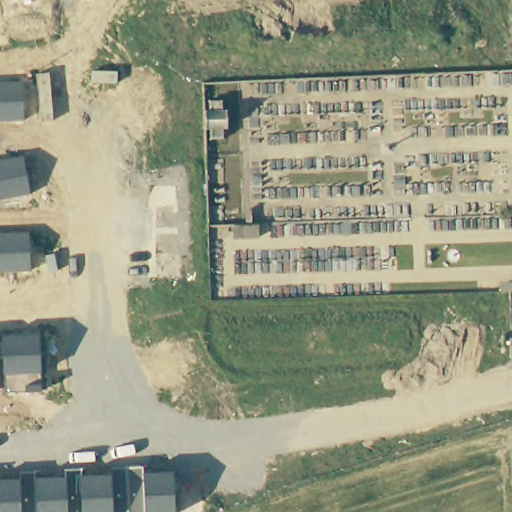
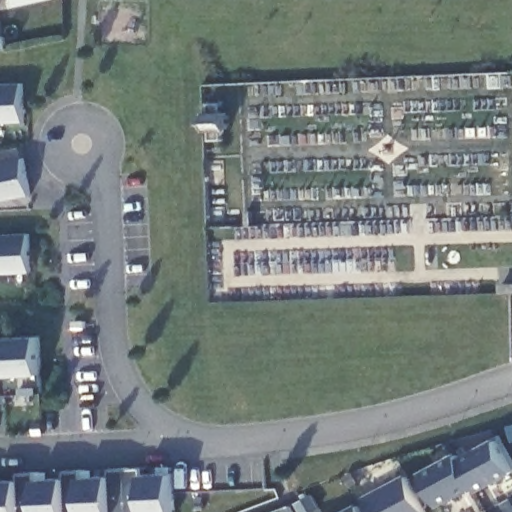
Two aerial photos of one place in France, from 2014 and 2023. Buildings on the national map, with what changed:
unchanged [(22,85),(24,121),(0,122),(0,86),(22,85)]
unchanged [(23,157),(30,196),(0,201),(0,161),(23,157)]
unchanged [(29,234),(30,272),(0,273),(0,234),(29,234)]
unchanged [(3,342),(3,338),(40,337),(42,373),(42,393),(6,395),(6,377),(4,357),(0,357),(0,342),(3,342)]
new [(512,473),(479,492),(475,485),(439,505),(420,472),(455,453),(458,458),(495,440),(512,468),(512,473)]
unchanged [(19,482),(20,474),(36,474),(36,480),(67,479),(66,470),(82,470),(82,477),(111,476),(111,470),(144,469),(145,475),(174,474),(176,512),(0,512),(0,482),(19,482)]
new [(373,512),(364,495),(406,474),(427,512),(373,512)]
new [(340,512),(358,502),(364,512),(340,512)]

